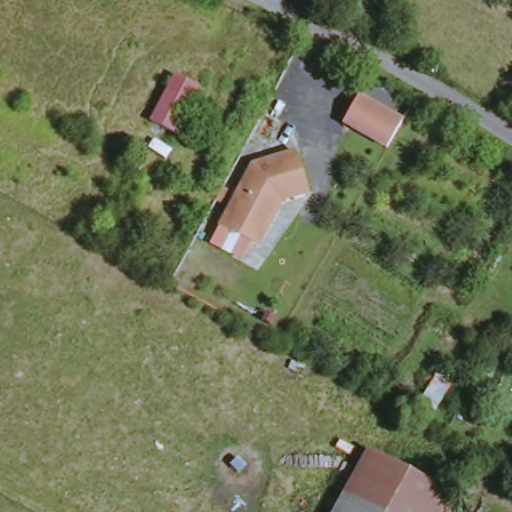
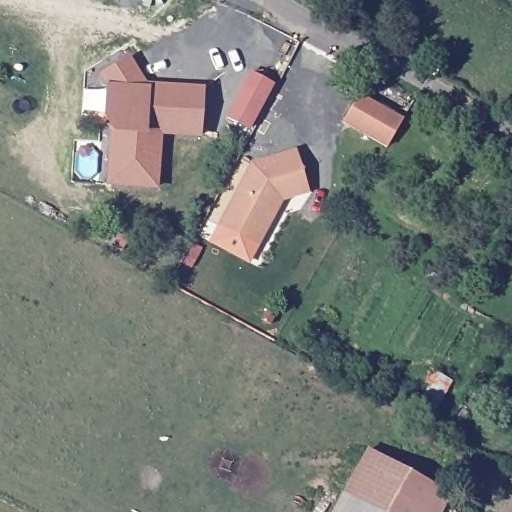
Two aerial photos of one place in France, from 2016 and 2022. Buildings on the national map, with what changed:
new [(144,80),(164,70),(178,86),(205,87),(202,139),(162,136),(158,191),(106,186),(113,134),(104,117),(106,86),(98,76),(129,57),(144,80)]
new [(275,85),(251,131),(226,118),(250,72),(275,85)]
demolished [(184,135),(163,125),(186,81),(208,90),(184,135)]
unchanged [(410,117),(394,144),(351,119),(366,92),(410,117)]
unchanged [(277,131),(261,122),(270,106),(286,114),(277,131)]
unchanged [(254,245),(223,227),(255,166),(299,152),(312,192),(283,201),(282,204),(277,214),(269,230),(260,248),(254,245)]
unchanged [(122,257),(112,253),(124,230),(135,235),(122,257)]
unchanged [(457,500),(450,512),(384,512),(352,492),(375,455),(457,500)]
unchanged [(384,512),(342,512),(352,492),(384,512)]

